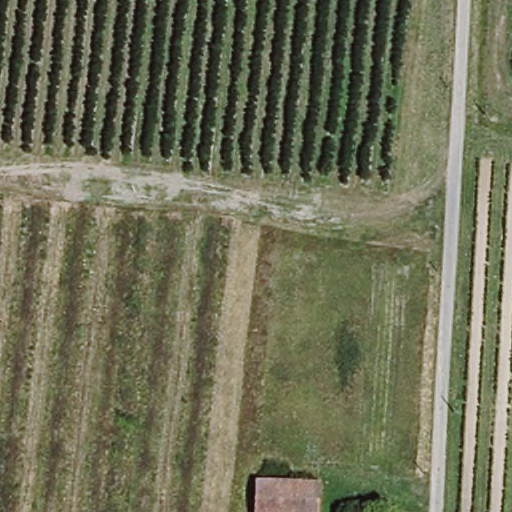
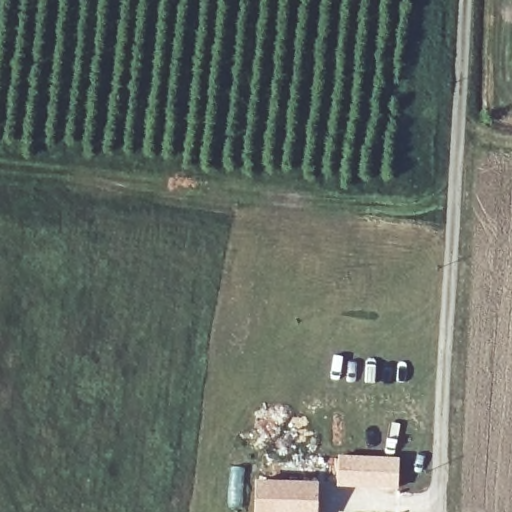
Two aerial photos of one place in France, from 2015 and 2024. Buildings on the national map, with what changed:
new [(338,454),(400,457),(399,491),(336,486),(338,454)]
unchanged [(264,512),(266,481),(304,482),(303,512),(264,512)]

